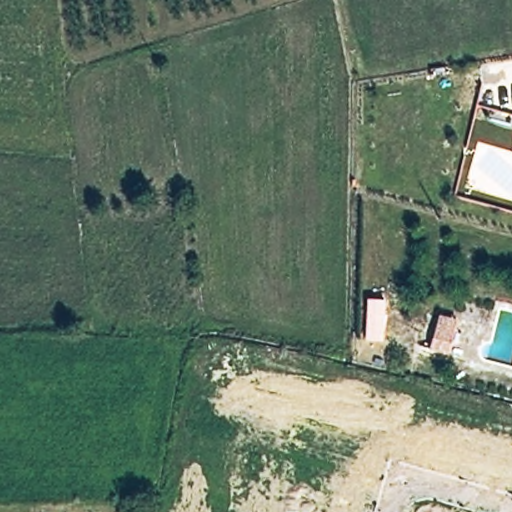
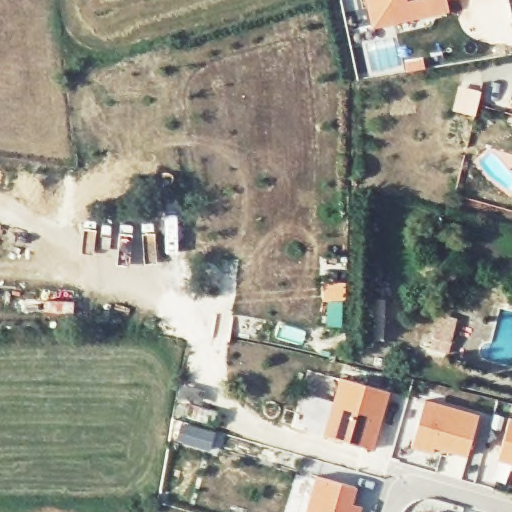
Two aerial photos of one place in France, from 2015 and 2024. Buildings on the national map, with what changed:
new [(365,3),(364,0),(382,0),(365,3)]
new [(444,6),(389,18),(385,0),(442,0),(444,6)]
new [(474,115),(452,110),(458,85),(480,90),(474,115)]
unchanged [(383,339),(365,339),(366,297),(386,298),(383,339)]
new [(448,352),(429,347),(439,312),(458,318),(448,352)]
new [(336,376),(385,389),(369,447),(321,434),(336,376)]
new [(430,455),(408,449),(421,402),(476,416),(464,457),(432,449),(430,455)]
new [(507,418),(512,420),(512,464),(496,460),(507,418)]
new [(355,486),(349,508),(359,511),(359,512),(305,512),(314,475),(355,486)]
new [(432,512),(430,512),(430,511),(432,512)]

